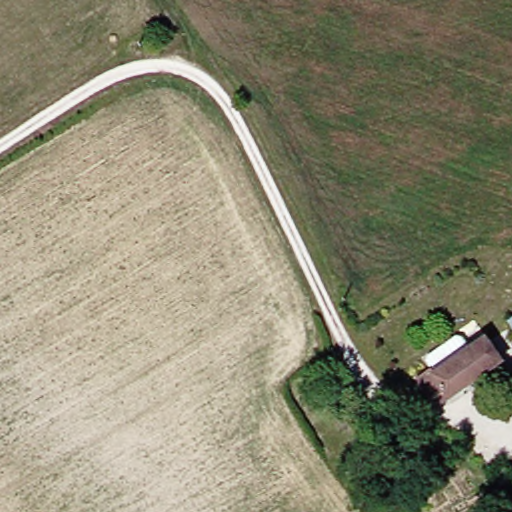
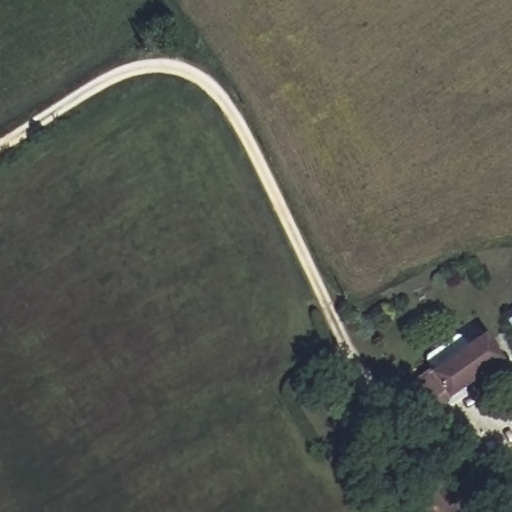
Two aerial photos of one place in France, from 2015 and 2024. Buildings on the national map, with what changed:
unchanged [(512,329),(512,335),(510,331),(512,329)]
unchanged [(437,399),(422,377),(437,367),(433,360),(434,356),(463,336),(468,337),(475,347),(491,336),(509,361),(455,398),(442,407),(437,399)]

